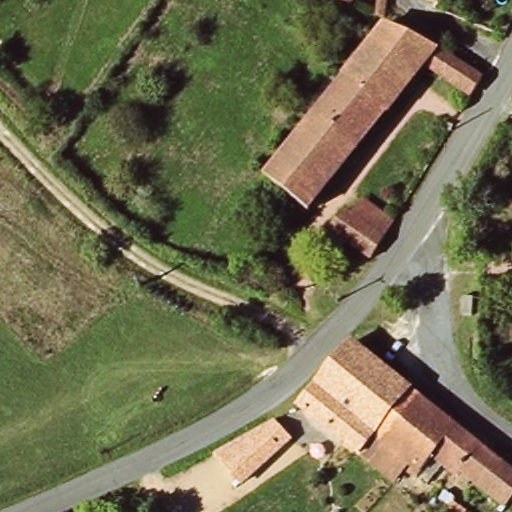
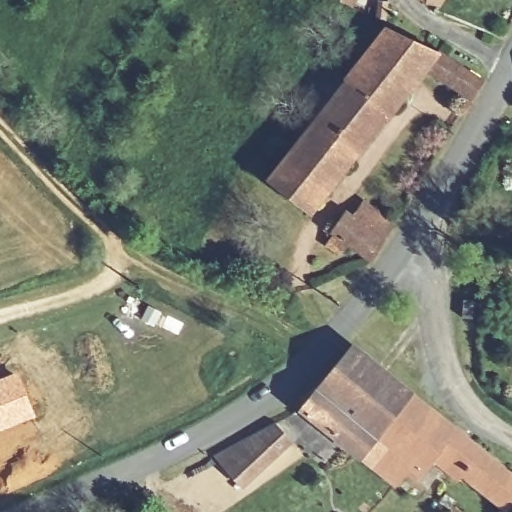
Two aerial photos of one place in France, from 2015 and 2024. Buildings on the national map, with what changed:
unchanged [(342,0),(362,0),(357,9),(342,0)]
unchanged [(486,84),(472,106),(431,72),(312,214),(268,177),(339,96),(393,32),(447,54),(486,84)]
unchanged [(348,244),(336,251),(330,245),(335,240),(336,232),(352,214),(364,222),(375,207),(402,226),(392,242),(377,264),(348,244)]
unchanged [(390,442),(375,463),(305,410),(355,347),(415,391),(382,434),(390,442)]
new [(35,415),(0,429),(0,376),(16,371),(35,415)]
unchanged [(512,467),(512,504),(506,510),(469,482),(466,485),(440,465),(420,485),(405,473),(397,480),(375,463),(390,442),(382,434),(415,391),(512,467)]
unchanged [(280,417),(296,438),(247,486),(223,458),(280,417)]

